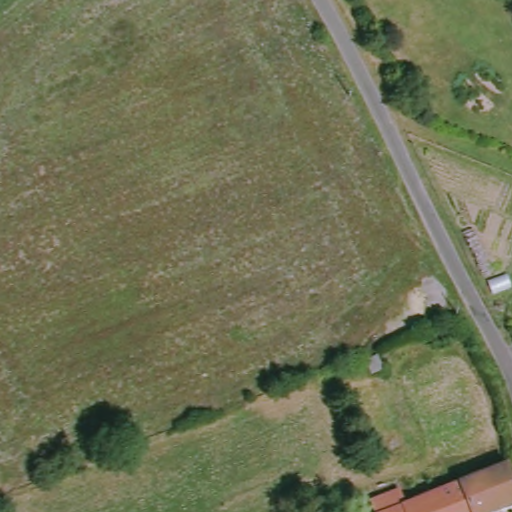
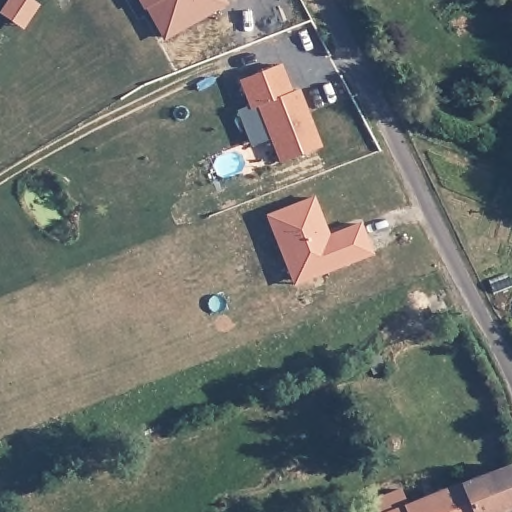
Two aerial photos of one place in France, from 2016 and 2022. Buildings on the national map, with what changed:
new [(137,0),(223,0),(226,5),(163,41),(142,9),(137,0)]
new [(321,146),(280,163),(256,105),(248,108),(238,80),(281,64),(292,92),(300,89),(321,146)]
new [(372,254),(293,285),(264,215),(314,196),(329,234),(361,223),(372,254)]
unchanged [(393,488),(401,505),(506,468),(512,492),(512,512),(370,512),(364,499),(393,488)]

